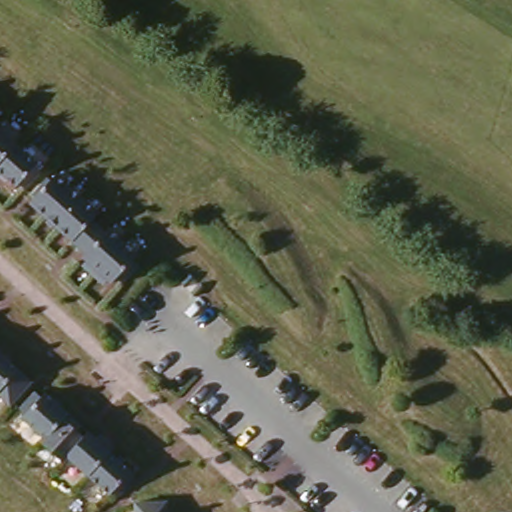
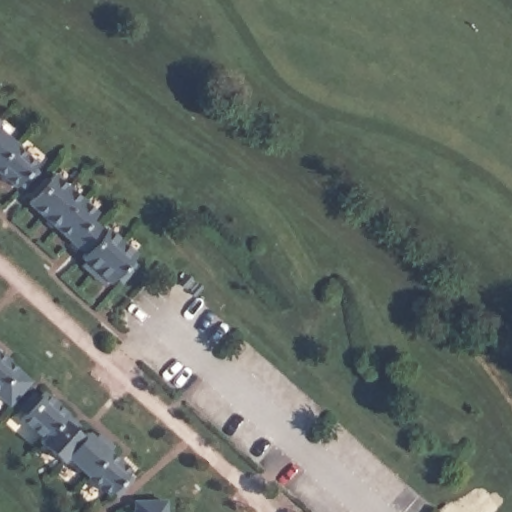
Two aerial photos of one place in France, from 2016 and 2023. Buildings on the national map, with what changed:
unchanged [(18,193),(0,178),(0,129),(36,174),(18,193)]
unchanged [(53,181),(107,233),(139,263),(119,285),(79,259),(82,256),(29,204),(53,181)]
unchanged [(7,407),(0,400),(0,354),(32,384),(7,407)]
unchanged [(70,414),(64,421),(81,437),(86,433),(111,454),(132,480),(112,497),(92,478),(67,459),(62,459),(42,440),(42,435),(21,417),(45,395),(70,414)]
unchanged [(164,503),(165,512),(134,512),(133,504),(164,503)]

